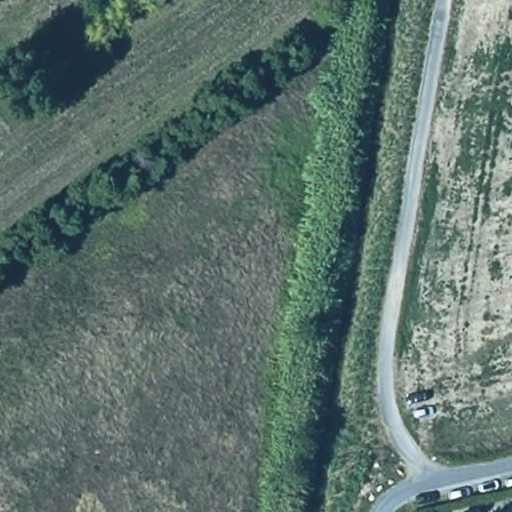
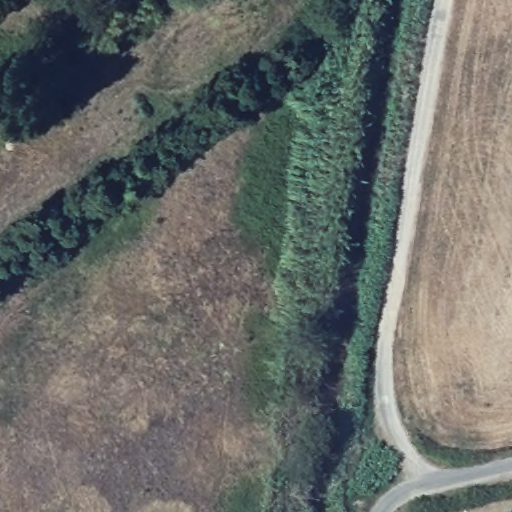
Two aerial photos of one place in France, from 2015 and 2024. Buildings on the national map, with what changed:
[]

